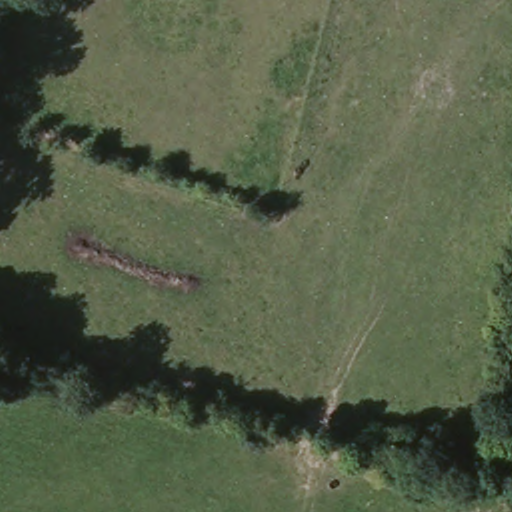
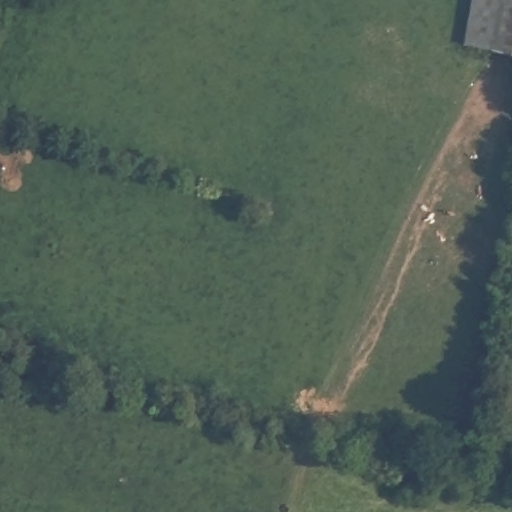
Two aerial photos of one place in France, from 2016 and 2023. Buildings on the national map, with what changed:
new [(512,52),(465,48),(473,0),(512,0),(512,52)]

